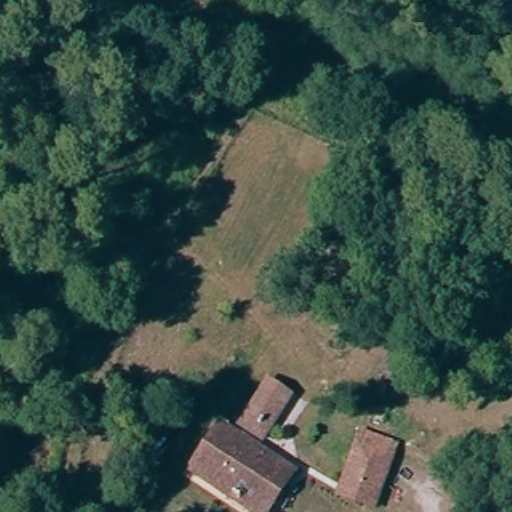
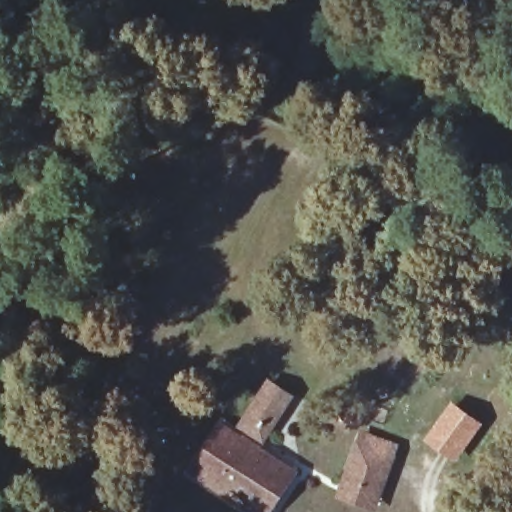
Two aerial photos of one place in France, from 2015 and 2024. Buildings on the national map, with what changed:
unchanged [(258,445),(234,429),(261,382),(288,399),(258,445)]
new [(482,425),(456,462),(422,439),(450,402),(482,425)]
unchanged [(188,474),(217,431),(274,470),(285,477),(262,512),(245,512),(188,474)]
unchanged [(343,486),(363,437),(389,448),(368,497),(363,508),(338,497),(343,486)]

